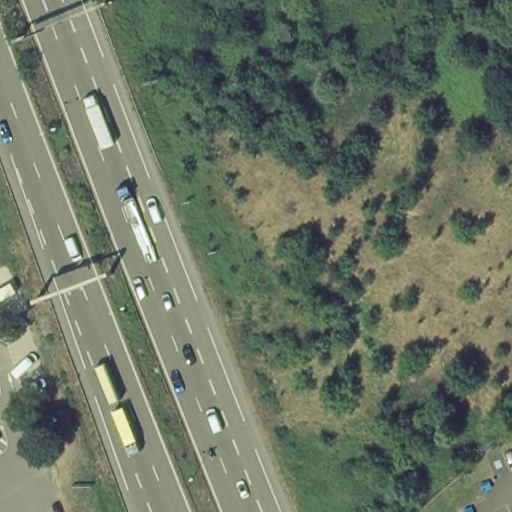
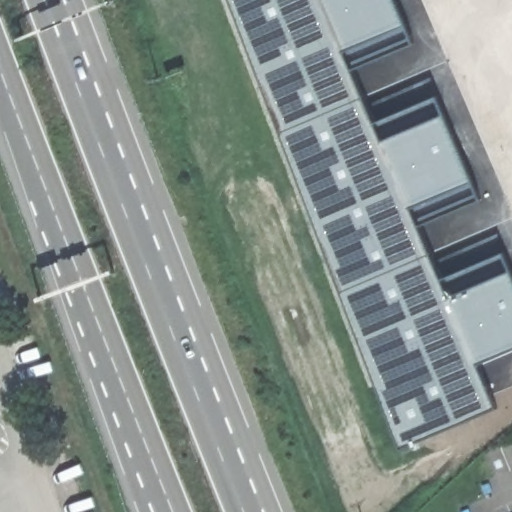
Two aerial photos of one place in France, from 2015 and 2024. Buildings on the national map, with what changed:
new [(412,45),(350,71),(366,107),(433,79),(480,202),(416,228),(433,265),(501,235),(512,264),(512,352),(480,365),(498,409),(404,448),(230,0),(394,0),(412,45)]

